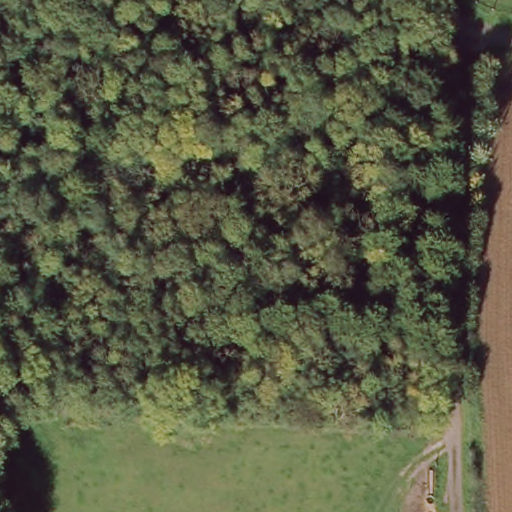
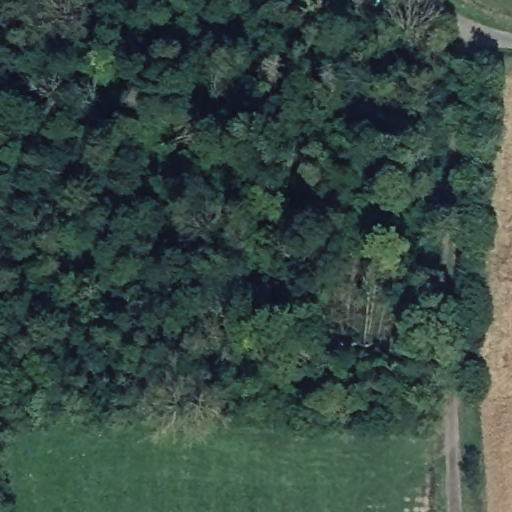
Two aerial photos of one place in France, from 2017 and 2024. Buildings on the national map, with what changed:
unchanged [(41,0),(39,10),(20,7),(21,0),(41,0)]

